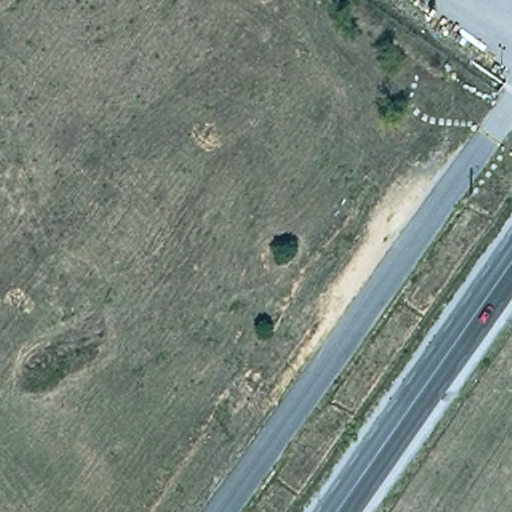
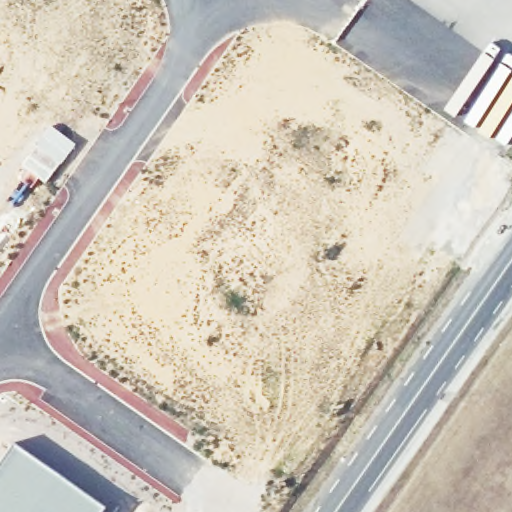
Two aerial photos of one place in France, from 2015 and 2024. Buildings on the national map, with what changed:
new [(105,508),(102,512),(0,512),(0,458),(12,443),(105,508)]

